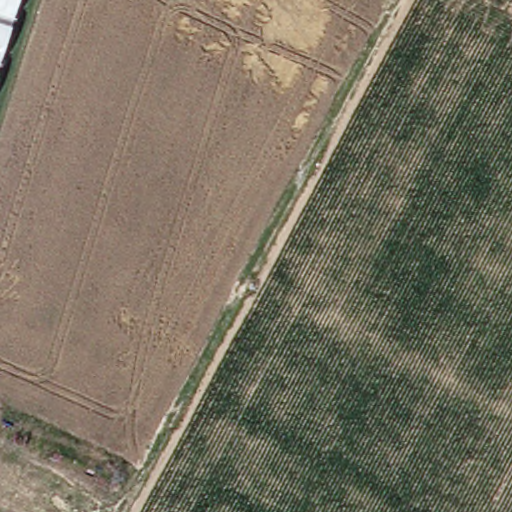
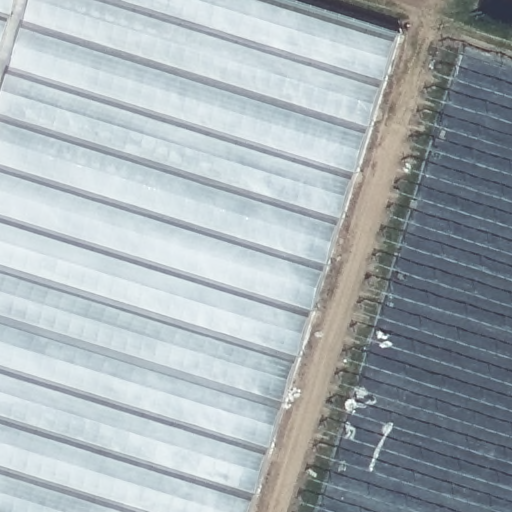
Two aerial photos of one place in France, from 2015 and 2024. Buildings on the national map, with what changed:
unchanged [(0,0),(19,0),(0,62),(0,0)]
new [(0,62),(19,0),(299,0),(402,32),(251,512),(0,512),(0,62)]
demolished [(266,295),(512,431),(512,467),(488,512),(148,512),(266,295)]

